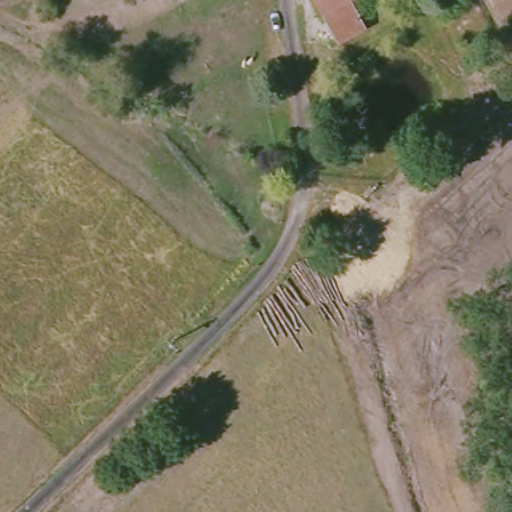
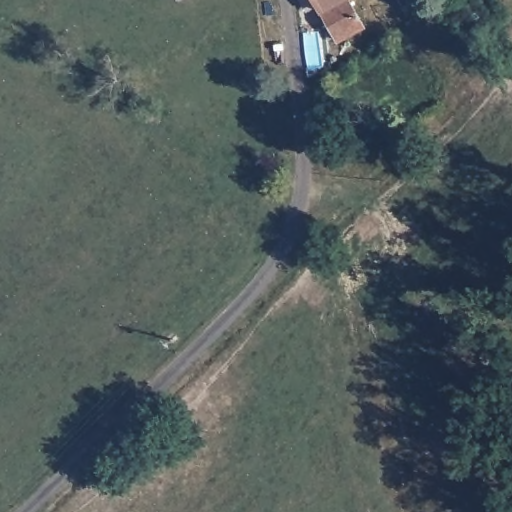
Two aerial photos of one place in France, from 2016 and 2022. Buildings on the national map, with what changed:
unchanged [(354,2),(366,28),(339,41),(317,0),(359,0),(354,2)]

